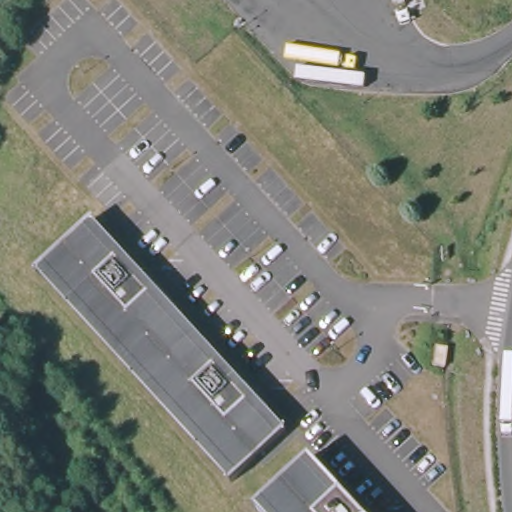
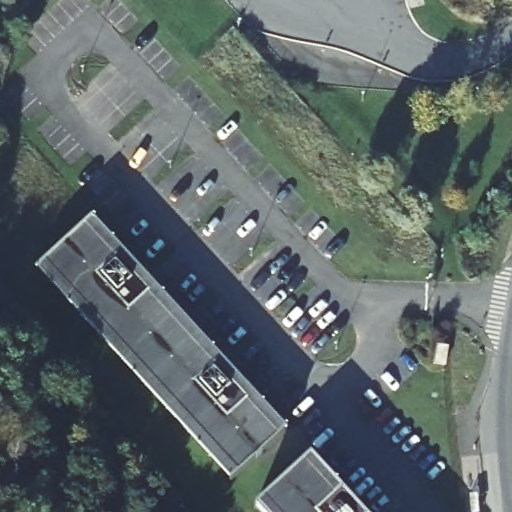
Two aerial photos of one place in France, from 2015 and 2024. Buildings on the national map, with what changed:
unchanged [(37,270),(36,269),(92,218),(93,219),(87,224),(117,256),(122,251),(149,281),(143,286),(155,298),(163,290),(177,305),(168,313),(210,358),(215,353),(242,382),(237,387),(248,399),(256,391),(270,406),(262,414),(280,434),(285,429),(287,430),(231,481),(230,480),(235,475),(43,265),(37,270)]
unchanged [(434,364),(437,346),(447,347),(445,366),(434,364)]
unchanged [(255,507),(311,456),(312,457),(306,462),(333,493),(337,496),(342,491),(361,511),(361,512),(270,512),(262,503),(256,508),(255,507)]

